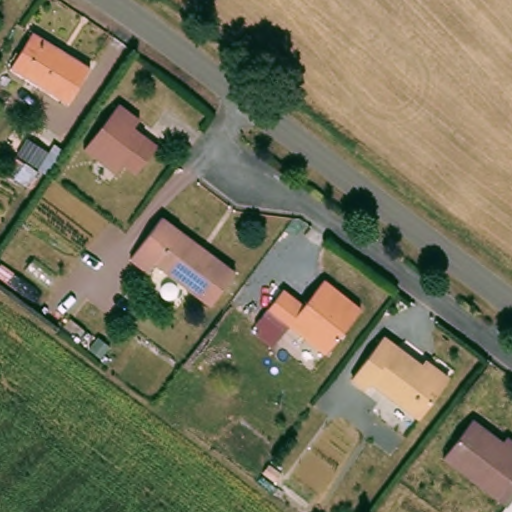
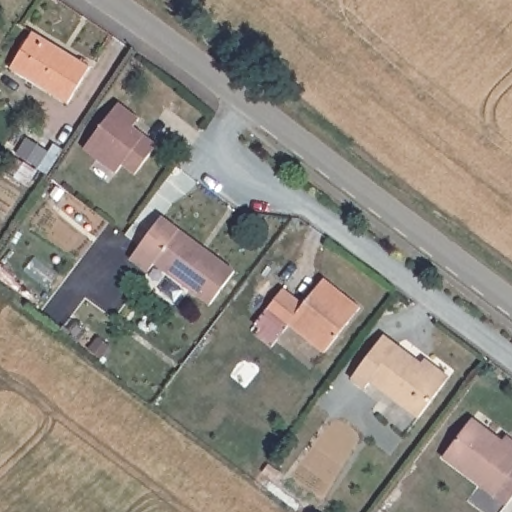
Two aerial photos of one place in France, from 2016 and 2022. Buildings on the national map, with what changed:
unchanged [(89,65),(65,102),(8,66),(30,30),(89,65)]
unchanged [(136,117),(132,125),(154,142),(132,171),(117,159),(109,169),(80,147),(114,102),(136,117)]
unchanged [(52,168),(42,165),(30,187),(10,174),(17,158),(6,150),(13,131),(62,152),(52,168)]
unchanged [(159,213),(234,268),(207,303),(152,263),(145,271),(127,257),(159,213)]
unchanged [(252,333),(257,327),(251,323),(259,312),(280,286),(300,301),(320,276),(355,302),(319,351),(283,323),(279,328),(266,343),(252,333)]
unchanged [(388,333),(449,378),(423,414),(377,379),(368,387),(353,377),(388,333)]
unchanged [(442,458),(473,416),(502,437),(508,431),(512,433),(512,496),(505,506),(442,458)]

